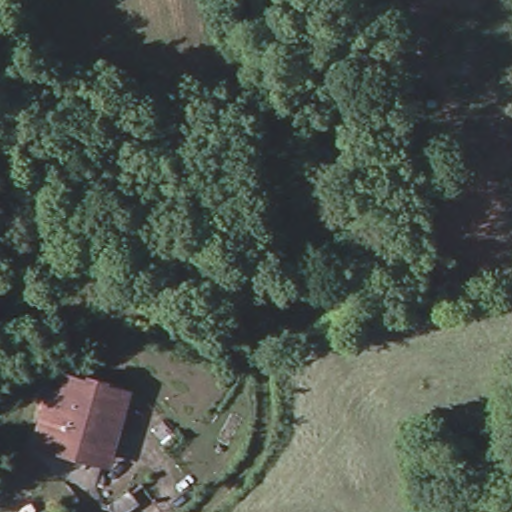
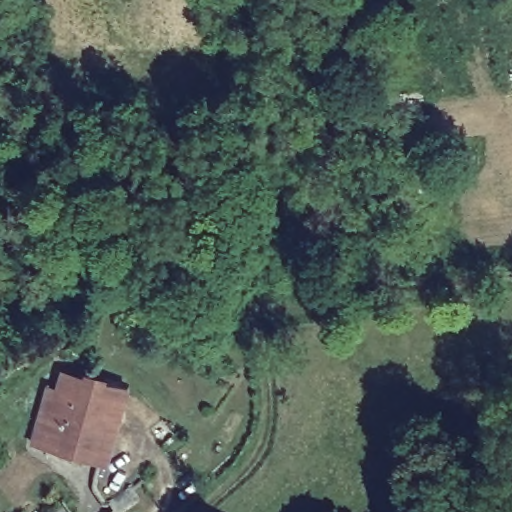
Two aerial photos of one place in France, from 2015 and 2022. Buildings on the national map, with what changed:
unchanged [(42,446),(64,370),(79,375),(57,450),(42,446)]
unchanged [(128,388),(127,394),(102,401),(87,458),(57,450),(79,375),(128,388)]
unchanged [(107,464),(87,458),(102,401),(127,394),(107,464)]
unchanged [(138,502),(124,512),(112,512),(106,504),(129,488),(138,502)]
unchanged [(62,505),(67,512),(53,512),(62,505)]

